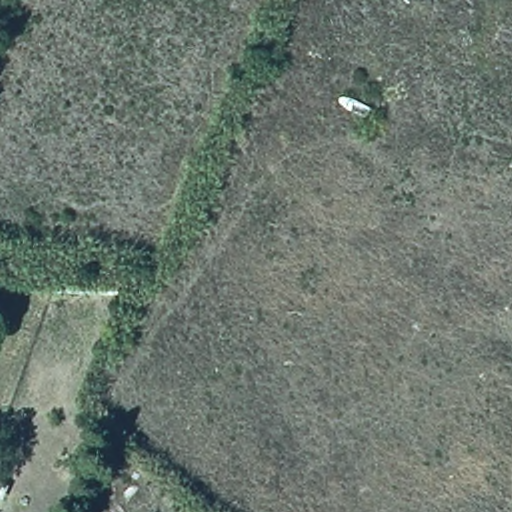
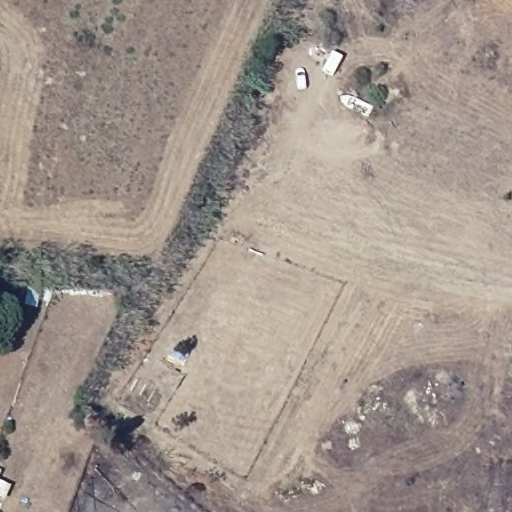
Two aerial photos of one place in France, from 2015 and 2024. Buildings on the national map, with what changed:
unchanged [(4,498),(0,498),(0,481),(10,486),(4,498)]

